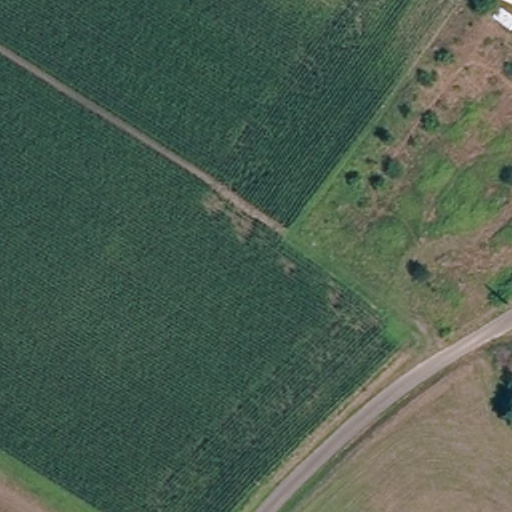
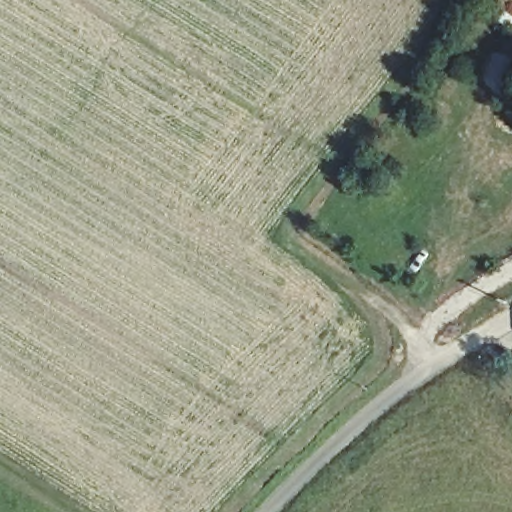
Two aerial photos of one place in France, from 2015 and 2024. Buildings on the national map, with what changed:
[]

